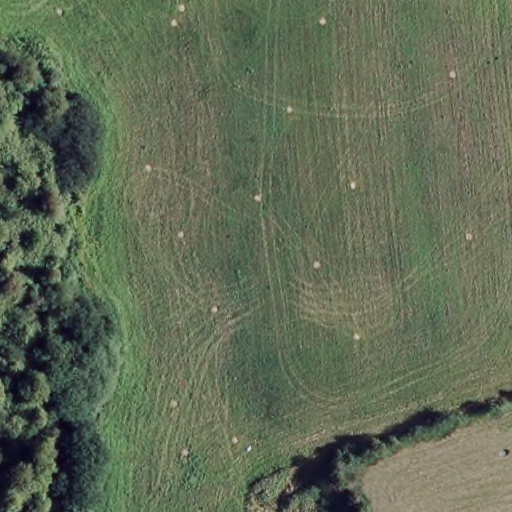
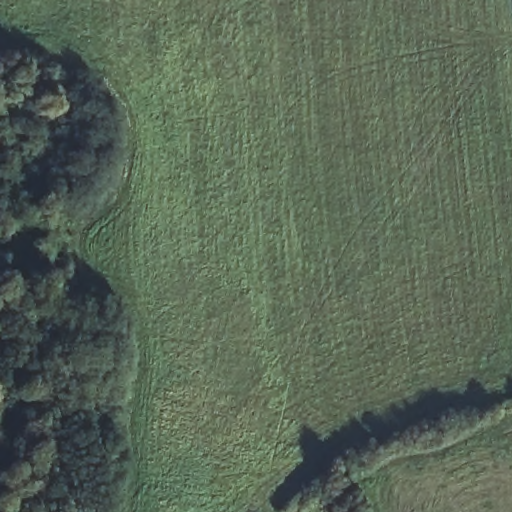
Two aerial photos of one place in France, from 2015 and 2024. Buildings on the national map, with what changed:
[]

